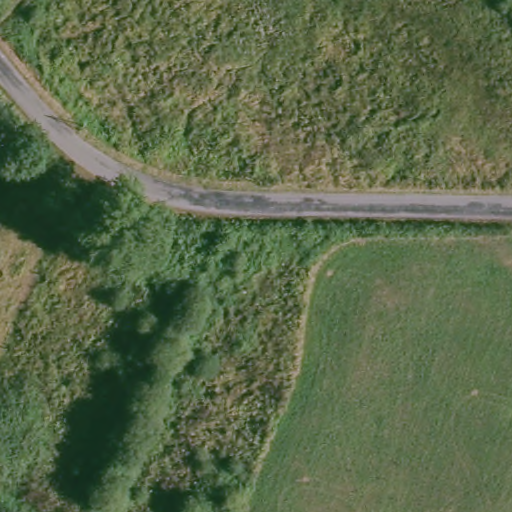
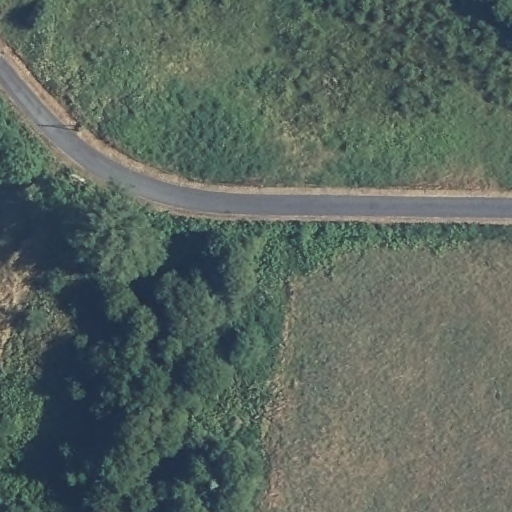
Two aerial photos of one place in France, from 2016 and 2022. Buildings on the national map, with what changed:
[]

